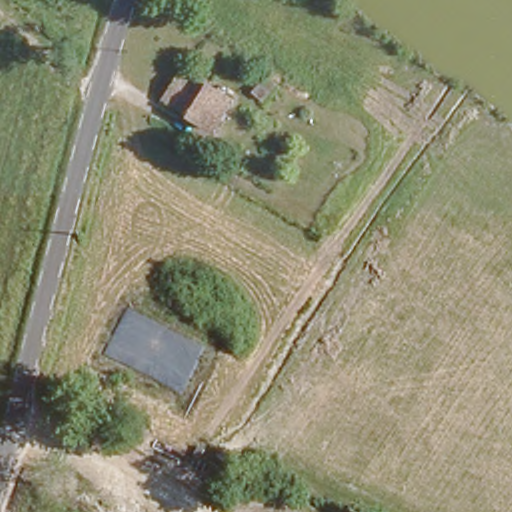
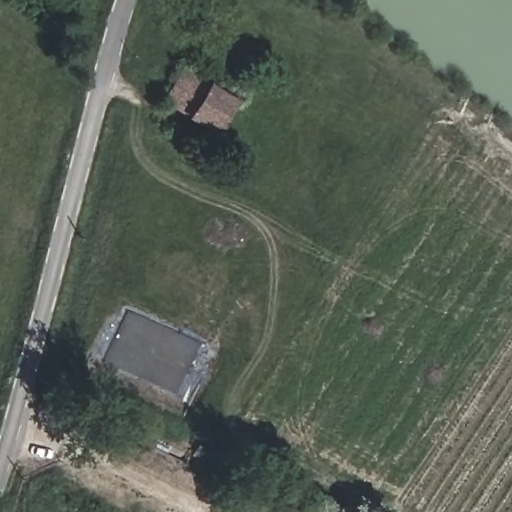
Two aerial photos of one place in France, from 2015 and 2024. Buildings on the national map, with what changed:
unchanged [(231,88),(204,132),(155,102),(181,58),(231,88)]

